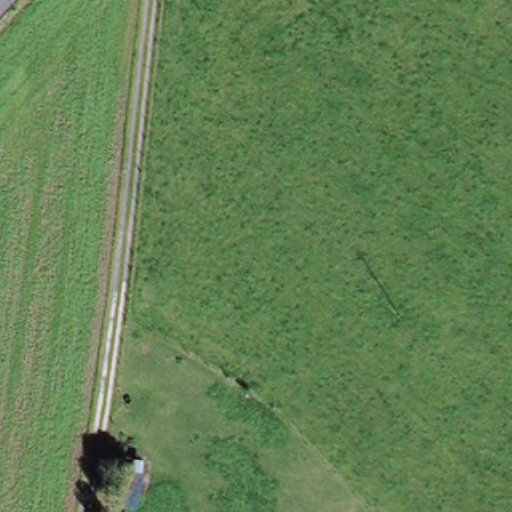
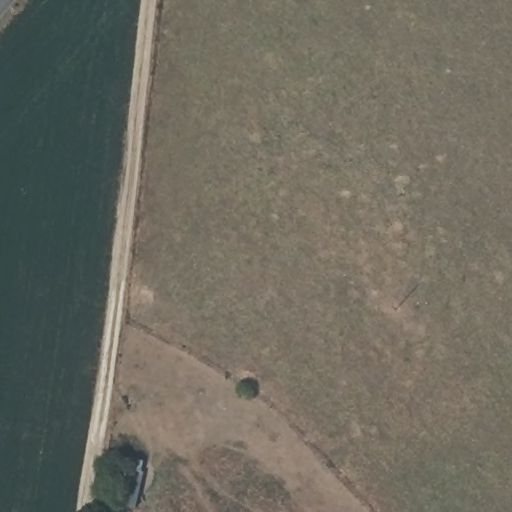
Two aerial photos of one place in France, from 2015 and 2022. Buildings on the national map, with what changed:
[]

